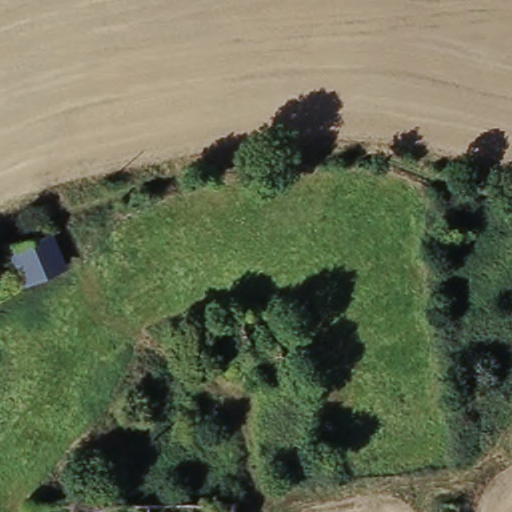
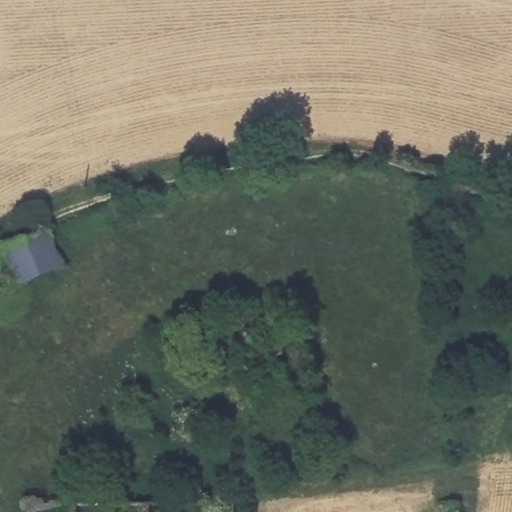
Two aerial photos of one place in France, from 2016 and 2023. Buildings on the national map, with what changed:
unchanged [(6,257),(5,251),(46,235),(61,268),(21,286),(6,257)]

